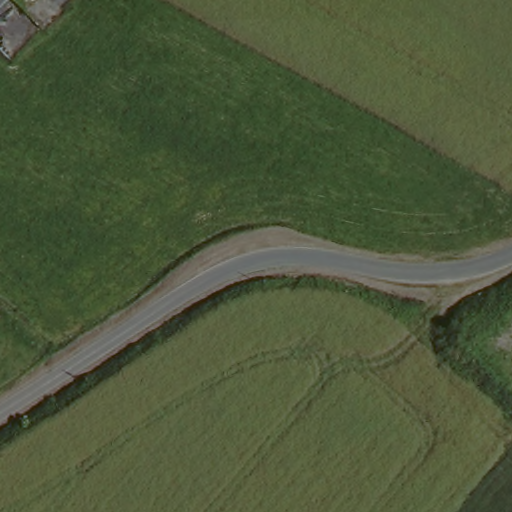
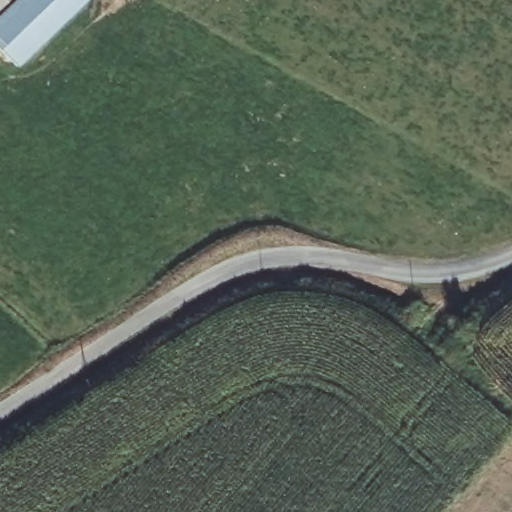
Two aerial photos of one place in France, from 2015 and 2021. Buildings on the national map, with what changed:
unchanged [(0,10),(0,0),(10,0),(0,10)]
new [(90,1),(20,68),(0,48),(0,10),(11,0),(89,0),(90,1)]

